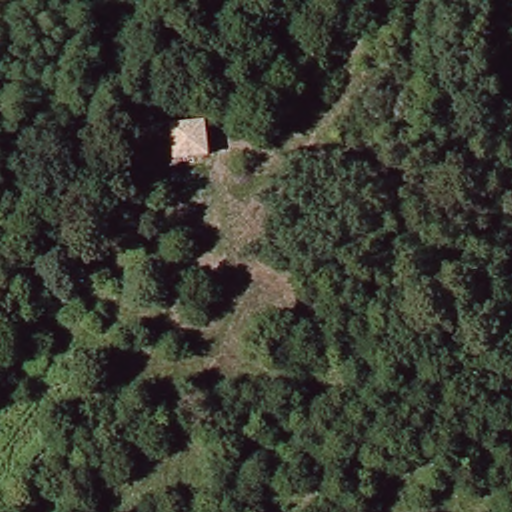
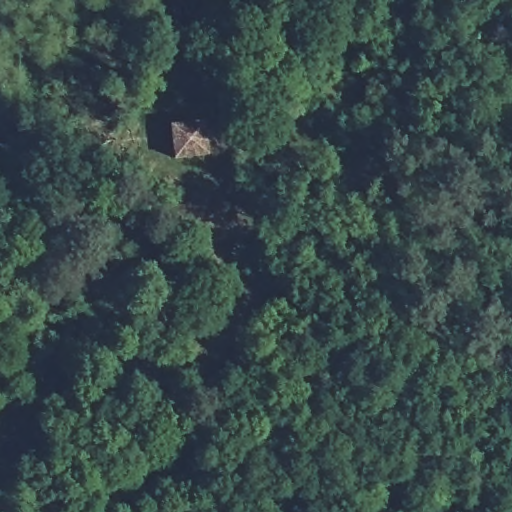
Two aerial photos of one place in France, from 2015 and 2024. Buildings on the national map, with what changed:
unchanged [(168,160),(164,126),(198,122),(202,156),(168,160)]

